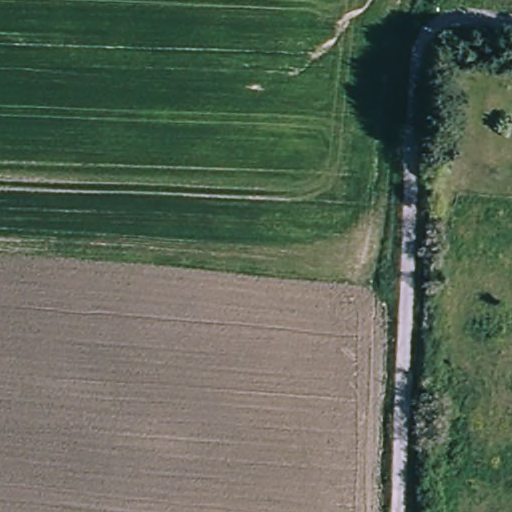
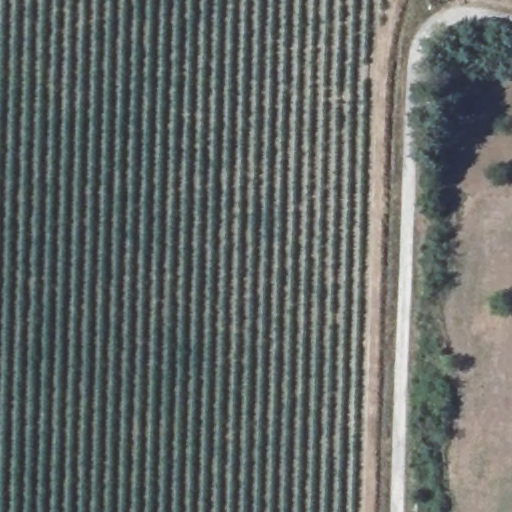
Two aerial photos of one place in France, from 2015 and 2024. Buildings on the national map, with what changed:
[]

